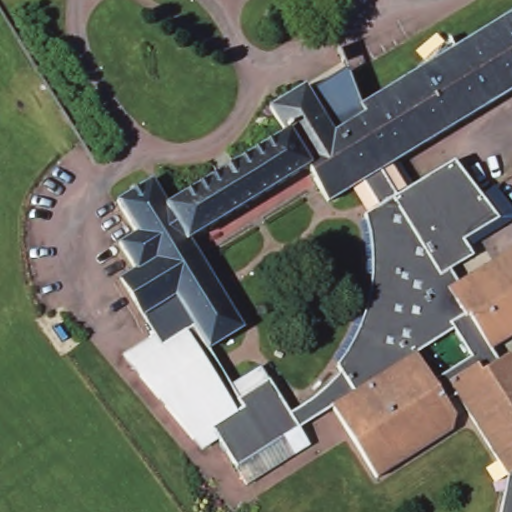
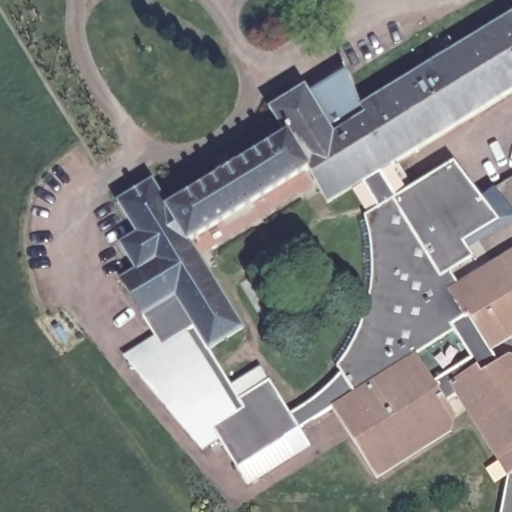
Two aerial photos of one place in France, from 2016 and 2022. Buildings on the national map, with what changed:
unchanged [(443,409),(456,431),(378,477),(341,416),(287,448),(297,465),(252,492),(212,426),(194,436),(126,355),(158,337),(123,279),(139,269),(124,243),(141,233),(120,198),(156,177),(175,209),(293,138),(274,106),(308,85),(314,94),(345,76),(363,105),(443,57),(438,50),(466,33),(470,40),(512,15),(512,90),(380,169),(395,193),(444,163),(497,224),(465,243),(474,259),(448,275),(462,297),(512,267),(512,346),(504,345),(490,354),(501,373),(509,368),(512,369),(512,488),(458,400),(443,409)]
unchanged [(512,506),(512,512),(505,512),(507,505),(512,506)]

